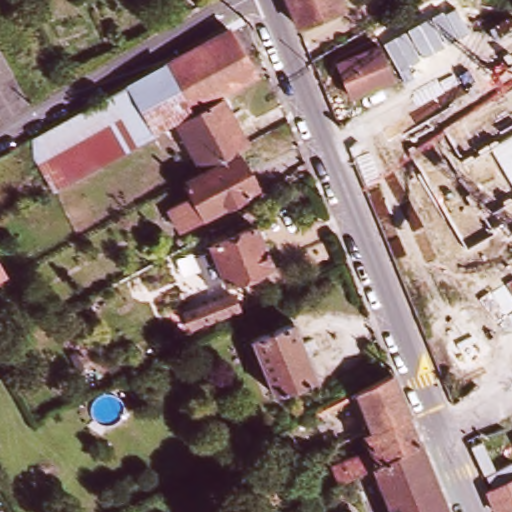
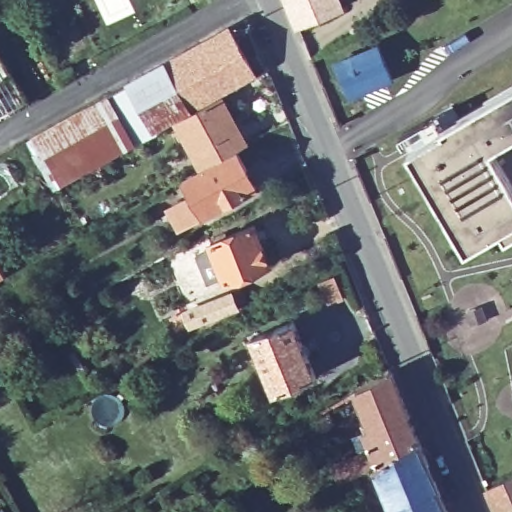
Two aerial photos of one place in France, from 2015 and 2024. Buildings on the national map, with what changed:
unchanged [(298,29),(286,0),(343,0),(347,9),(298,29)]
unchanged [(255,79),(155,134),(156,138),(134,149),(108,102),(230,34),(255,79)]
unchanged [(380,44),(393,78),(351,94),(339,61),(380,44)]
unchanged [(0,59),(26,107),(0,121),(0,59)]
new [(512,88),(512,239),(509,241),(503,230),(468,250),(409,149),(512,88)]
unchanged [(250,148),(200,175),(174,128),(224,100),(250,148)]
unchanged [(108,102),(134,149),(76,182),(59,191),(51,195),(26,149),(34,144),(108,102)]
unchanged [(240,157),(258,192),(180,233),(169,212),(192,200),(185,187),(240,157)]
unchanged [(275,269),(232,285),(230,280),(213,287),(202,258),(213,254),(212,250),(217,248),(217,245),(260,229),(275,269)]
unchanged [(0,279),(0,269),(5,277),(0,279)]
unchanged [(188,317),(236,298),(240,312),(194,330),(188,317)]
unchanged [(274,393),(253,339),(295,322),(317,376),(274,393)]
unchanged [(411,416),(373,426),(362,405),(318,428),(313,414),(394,372),(411,416)]
demolished [(187,480),(171,487),(138,411),(149,406),(155,409),(157,414),(163,413),(193,480),(190,481),(187,480)]
unchanged [(375,466),(342,483),(334,465),(351,456),(353,458),(374,447),(366,430),(373,426),(411,416),(422,441),(375,466)]
unchanged [(450,512),(449,512),(378,512),(374,500),(387,494),(375,466),(422,441),(450,512)]
unchanged [(512,481),(512,511),(511,512),(496,512),(489,493),(512,481)]
unchanged [(339,494),(328,499),(324,493),(335,487),(339,494)]

